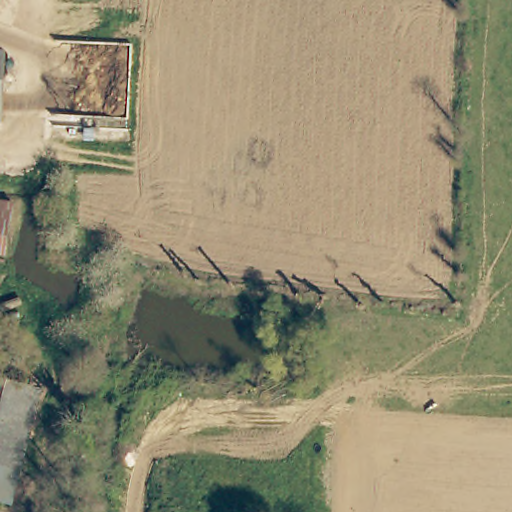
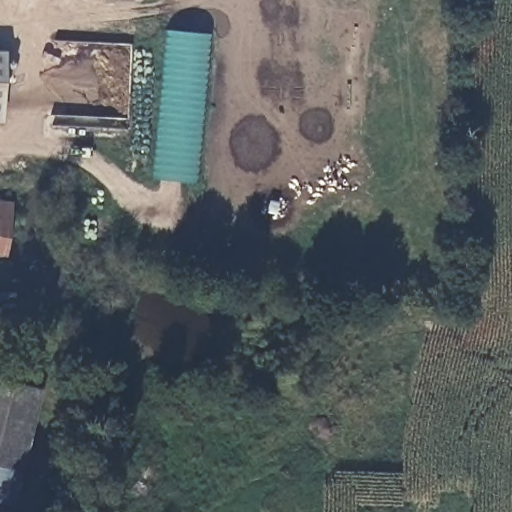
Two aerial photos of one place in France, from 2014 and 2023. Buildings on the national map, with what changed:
new [(207,33),(195,181),(150,177),(164,29),(207,33)]
unchanged [(4,131),(0,131),(0,51),(7,51),(4,131)]
unchanged [(0,255),(0,204),(14,207),(5,256),(0,255)]
unchanged [(0,503),(0,380),(35,386),(7,504),(0,503)]

